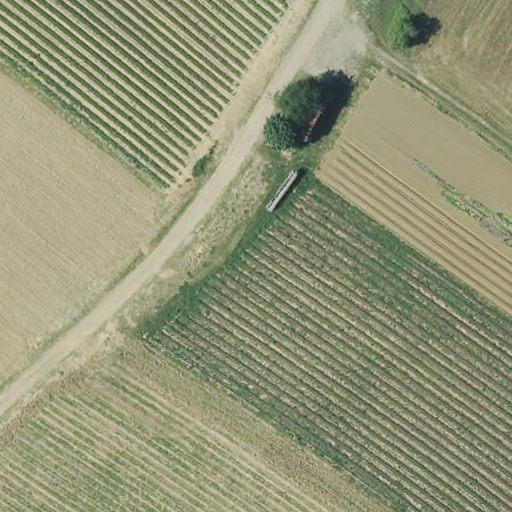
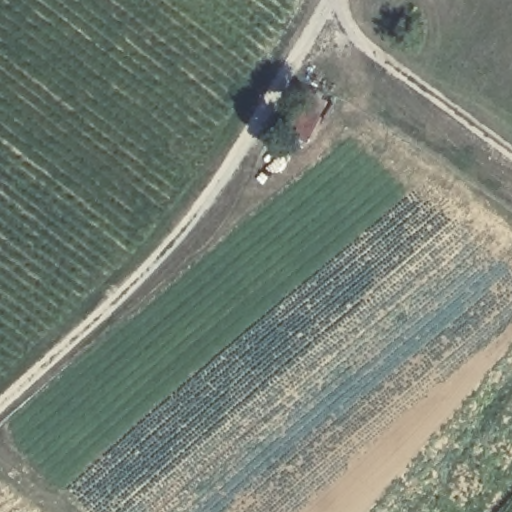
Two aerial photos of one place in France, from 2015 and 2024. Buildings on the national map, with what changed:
unchanged [(332,106),(307,144),(281,130),(303,90),(332,106)]

